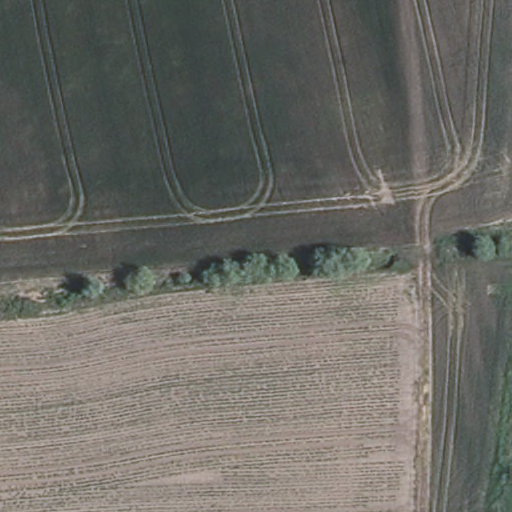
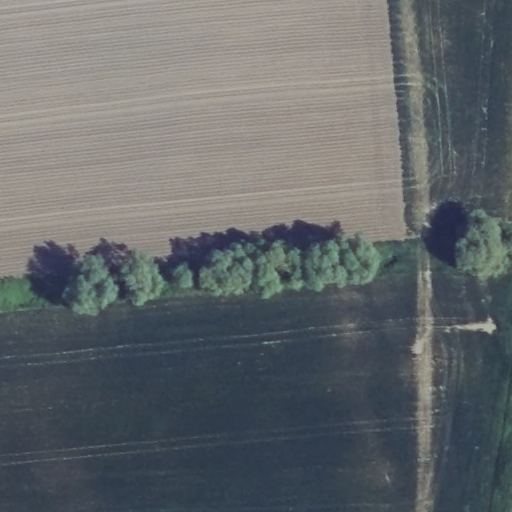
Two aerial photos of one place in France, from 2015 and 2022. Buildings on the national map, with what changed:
[]

